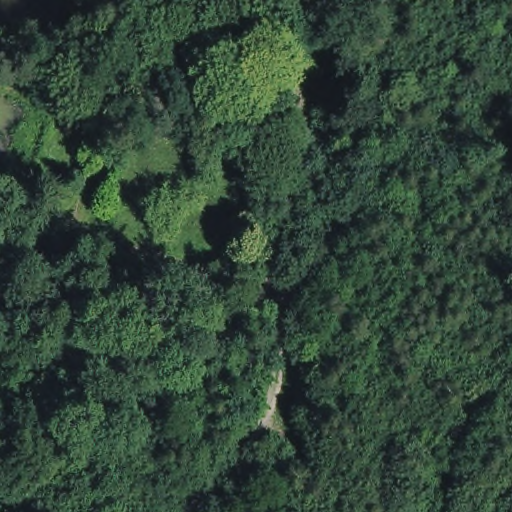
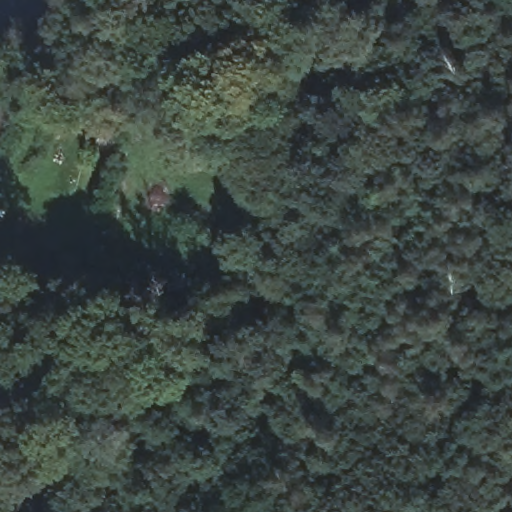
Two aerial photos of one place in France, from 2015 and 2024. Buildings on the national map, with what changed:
unchanged [(107,117),(120,119),(115,147),(102,144),(107,117)]

